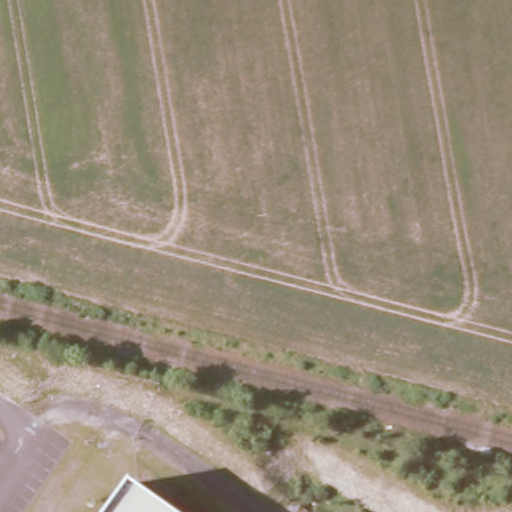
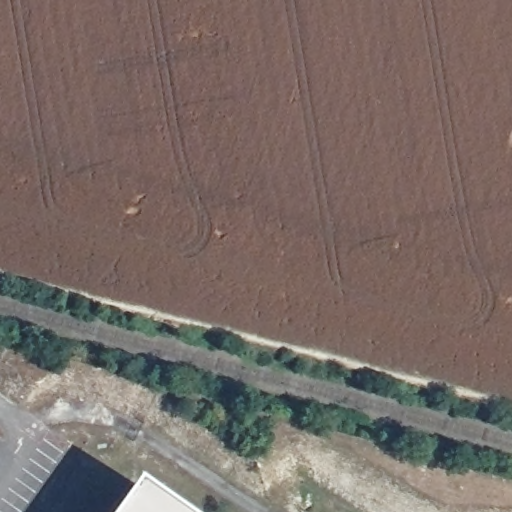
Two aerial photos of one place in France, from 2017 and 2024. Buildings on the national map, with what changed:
unchanged [(110,512),(132,481),(174,512),(110,512)]

